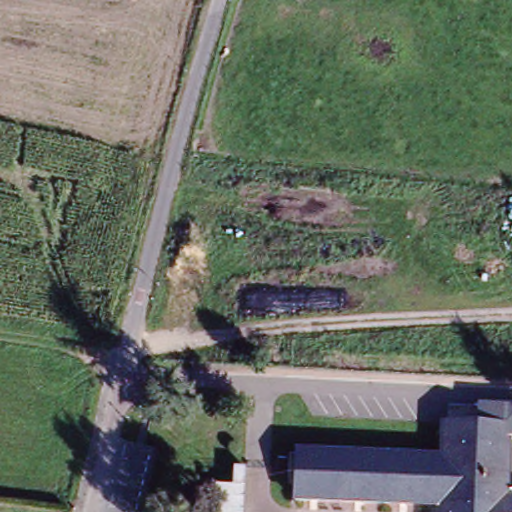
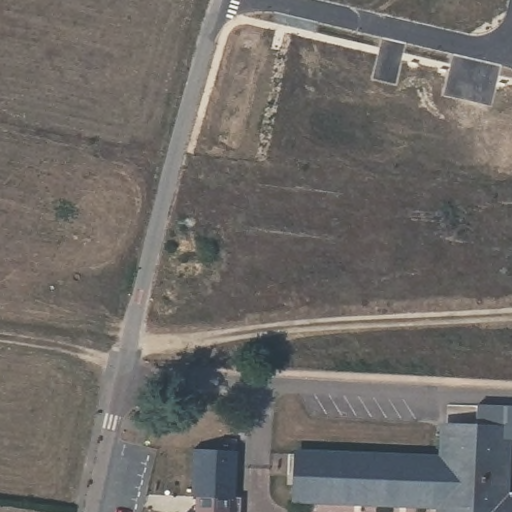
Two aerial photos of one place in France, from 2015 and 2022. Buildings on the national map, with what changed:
unchanged [(290,456),(431,459),(433,430),(470,433),(470,418),(500,419),(499,499),(512,499),(512,512),(445,512),(445,506),(288,500),(290,456)]
new [(234,450),(232,498),(227,498),(227,510),(238,510),(238,512),(195,512),(195,497),(190,497),(190,449),(234,450)]

